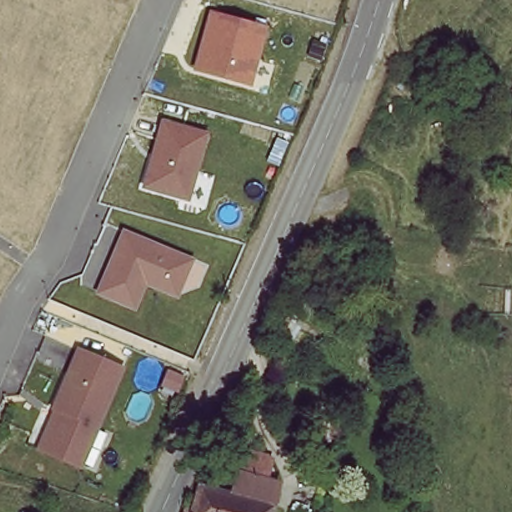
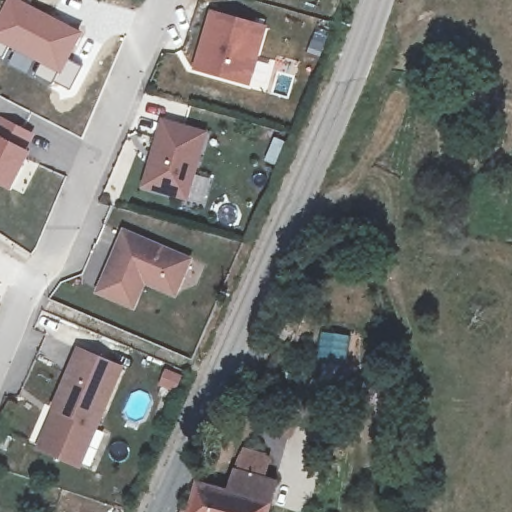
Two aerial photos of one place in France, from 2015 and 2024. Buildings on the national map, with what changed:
new [(5,0),(22,0),(82,32),(70,59),(83,65),(72,91),(35,75),(41,64),(9,48),(3,59),(0,58),(0,9),(5,0)]
unchanged [(209,10),(267,26),(251,86),(192,69),(209,10)]
new [(12,191),(0,184),(0,118),(1,117),(34,134),(27,151),(30,153),(12,191)]
unchanged [(161,119),(207,130),(188,200),(142,187),(161,119)]
unchanged [(194,258),(177,299),(146,288),(136,312),(95,295),(122,228),(194,258)]
unchanged [(82,470),(33,451),(74,348),(123,369),(82,470)]
unchanged [(231,491),(239,469),(280,481),(276,494),(272,506),(270,512),(191,512),(199,484),(231,491)]

